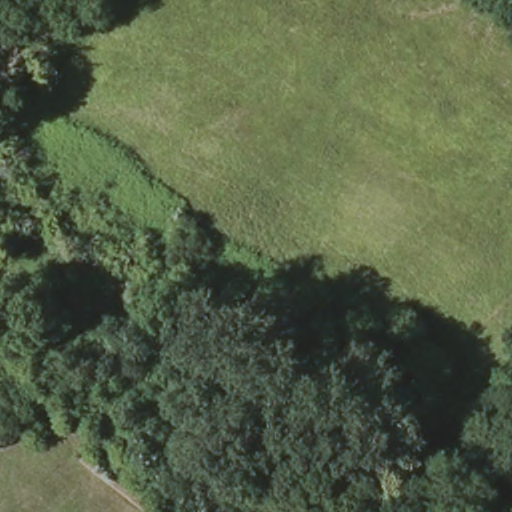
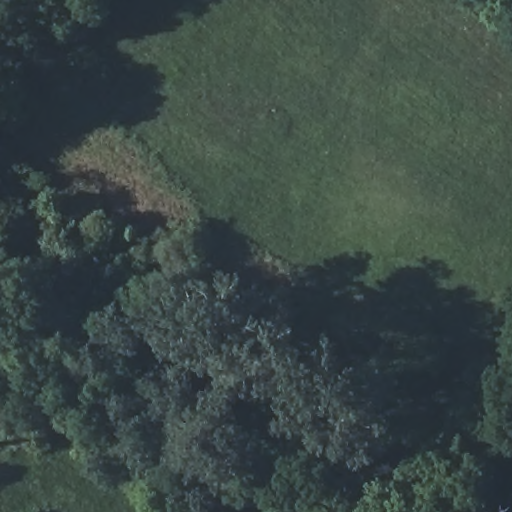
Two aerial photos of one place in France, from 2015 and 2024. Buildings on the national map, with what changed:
[]

